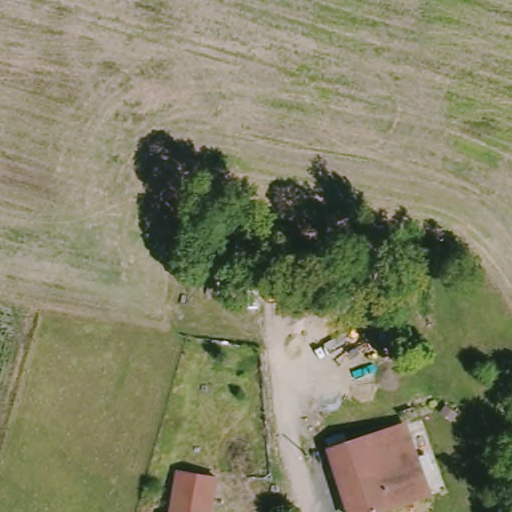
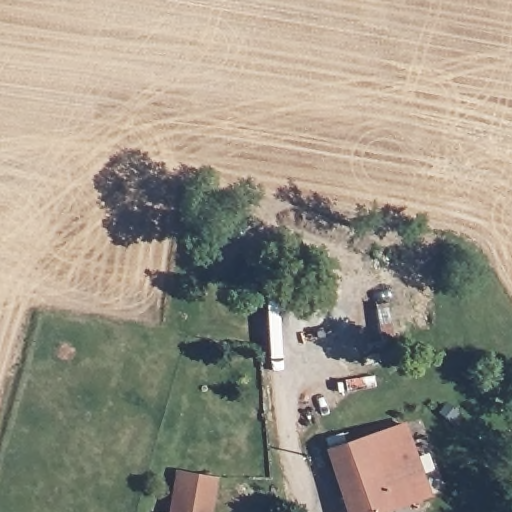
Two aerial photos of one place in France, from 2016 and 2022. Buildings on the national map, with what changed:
unchanged [(329,449),(404,425),(428,496),(380,512),(350,512),(329,449)]
unchanged [(179,470),(216,477),(209,512),(172,512),(179,470)]

